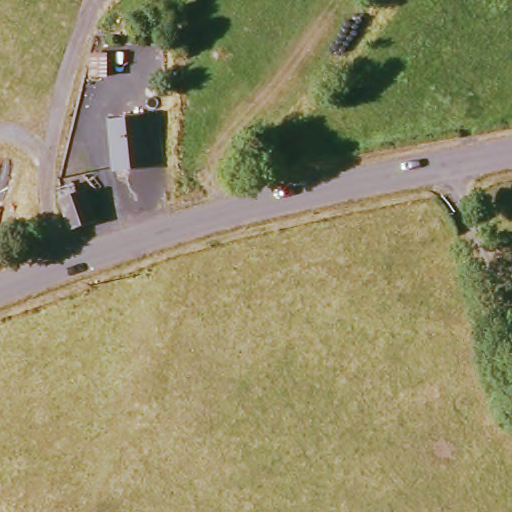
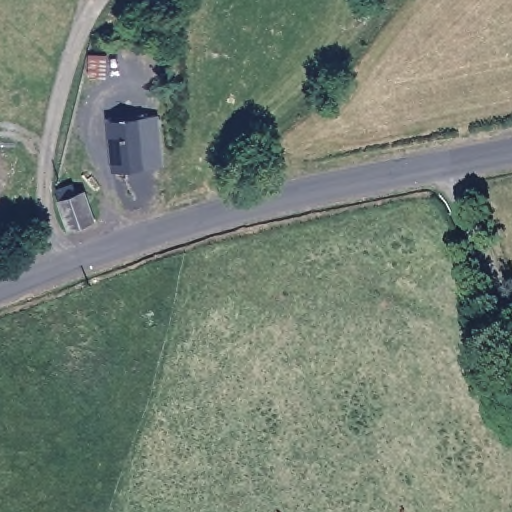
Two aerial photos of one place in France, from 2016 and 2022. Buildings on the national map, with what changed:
unchanged [(108,73),(89,73),(90,50),(109,50),(108,73)]
unchanged [(153,166),(110,170),(105,119),(148,117),(153,166)]
unchanged [(56,199),(61,197),(57,186),(59,185),(63,184),(70,180),(73,195),(83,190),(93,221),(68,230),(56,199)]

